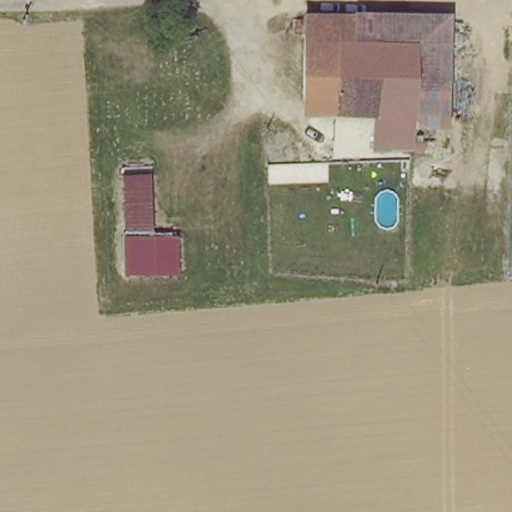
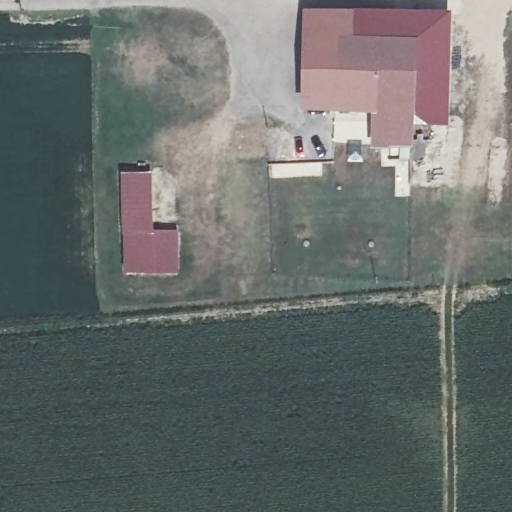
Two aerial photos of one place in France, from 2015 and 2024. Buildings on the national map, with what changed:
unchanged [(369,115),(332,115),(333,98),(302,98),(306,14),(412,16),(446,17),(445,115),(412,115),(369,115)]
unchanged [(412,115),(412,151),(369,151),(369,115),(412,115)]
unchanged [(125,172),(151,173),(152,232),(125,231),(125,172)]
unchanged [(152,232),(171,232),(170,269),(124,268),(125,231),(152,232)]

